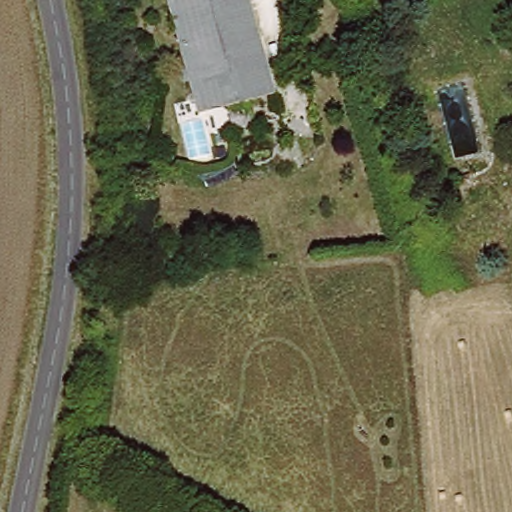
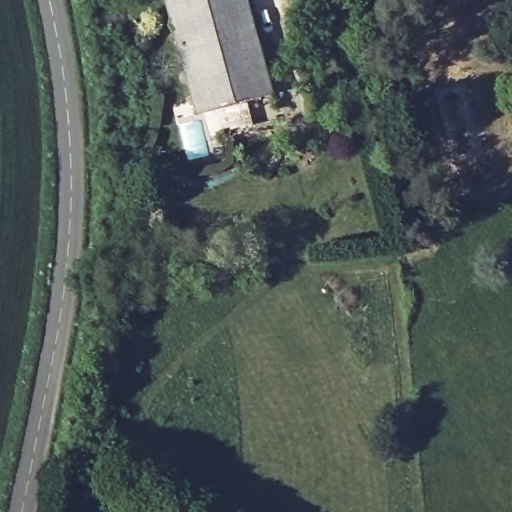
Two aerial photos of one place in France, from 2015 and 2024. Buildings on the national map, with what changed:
unchanged [(250,0),(275,93),(198,113),(168,0),(250,0)]
unchanged [(423,0),(434,0),(424,3),(423,0)]

